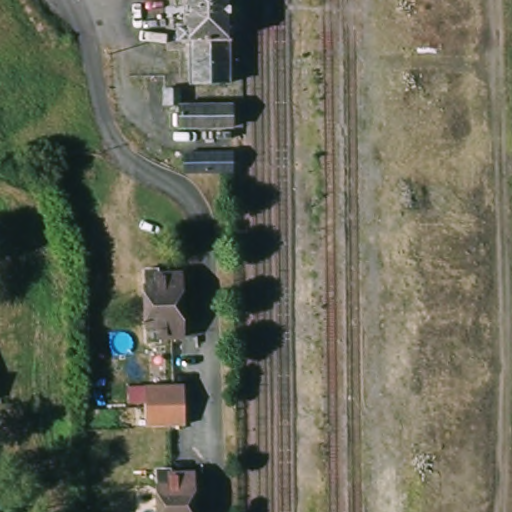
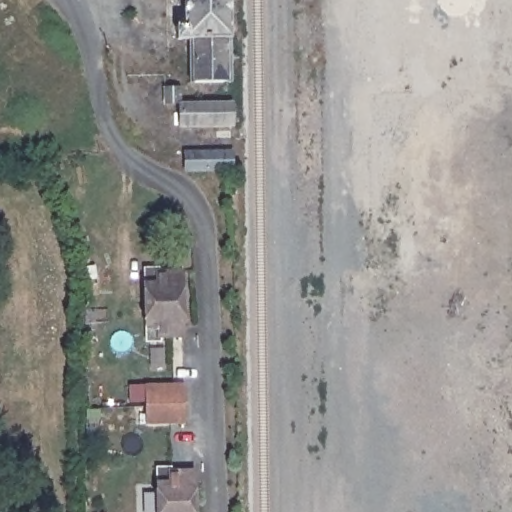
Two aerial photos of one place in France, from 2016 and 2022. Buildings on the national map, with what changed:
unchanged [(188,41),(178,40),(178,25),(186,26),(186,0),(230,0),(230,40),(230,82),(190,82),(188,41)]
unchanged [(179,91),(179,106),(162,106),(162,90),(179,91)]
unchanged [(230,130),(181,131),(179,106),(230,105),(230,130)]
unchanged [(231,155),(231,173),(221,173),(188,175),(183,175),(183,155),(231,155)]
unchanged [(155,273),(169,272),(170,277),(191,277),(190,342),(169,341),(169,345),(155,343),(155,273)]
unchanged [(172,428),(132,428),(132,408),(132,388),(172,387),(174,387),(174,408),(174,428),(172,428)]
unchanged [(158,467),(159,471),(181,471),(183,512),(144,512),(144,466),(158,467)]

